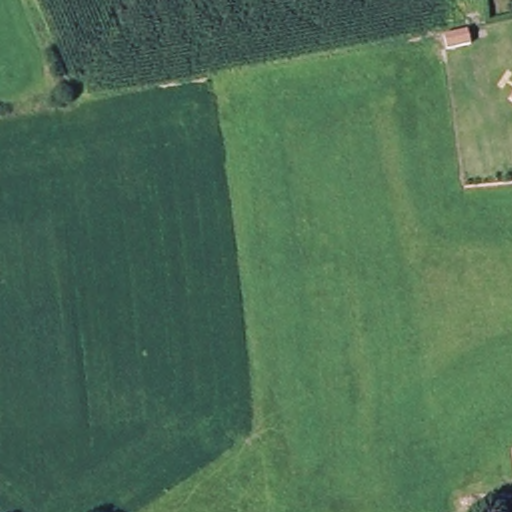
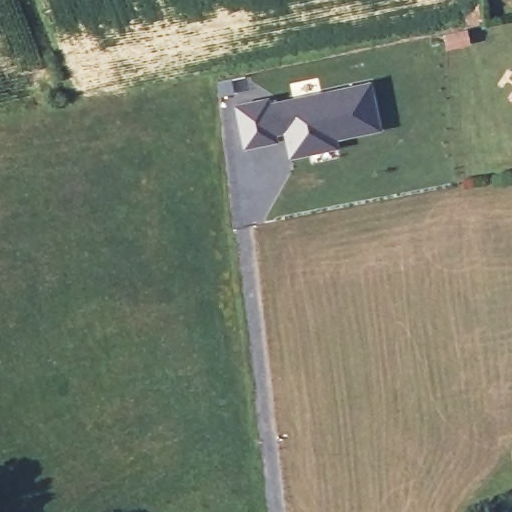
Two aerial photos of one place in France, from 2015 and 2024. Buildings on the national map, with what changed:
unchanged [(464,43),(440,48),(437,34),(444,33),(461,29),(464,43)]
new [(261,98),(290,97),(373,79),(384,130),(339,139),(341,148),(288,158),(283,141),(243,149),(234,103),(261,98)]
unchanged [(511,447),(512,447),(512,456),(511,447)]

